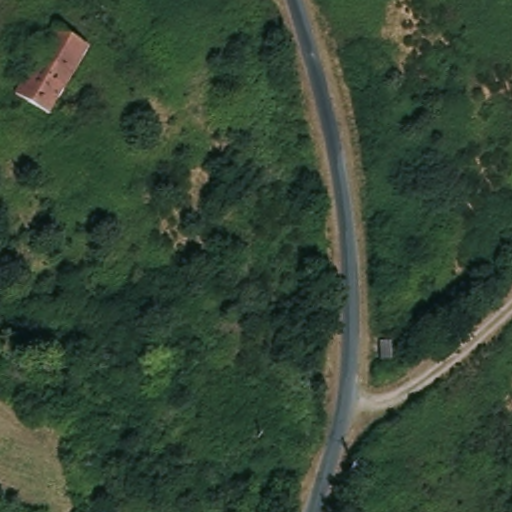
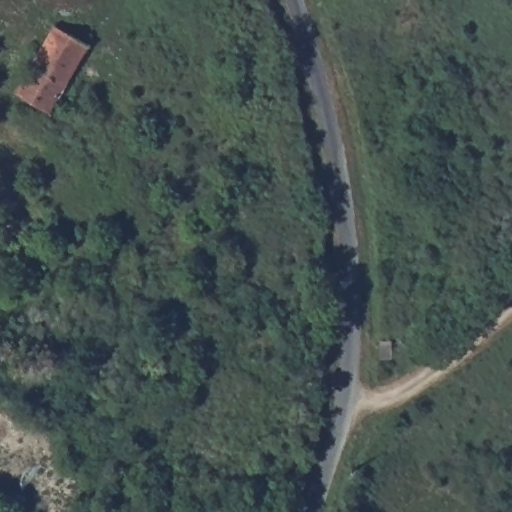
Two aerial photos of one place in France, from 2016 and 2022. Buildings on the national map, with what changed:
unchanged [(30,62),(39,67),(40,66),(54,42),(45,37),(54,24),(88,44),(54,102),(49,110),(45,109),(14,90),(30,62)]
unchanged [(389,328),(391,347),(379,348),(378,330),(389,328)]

